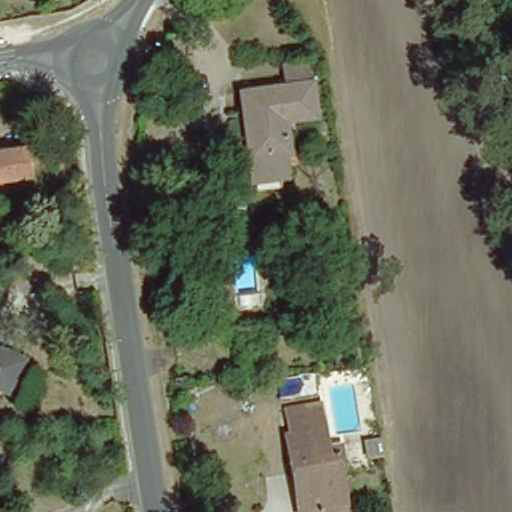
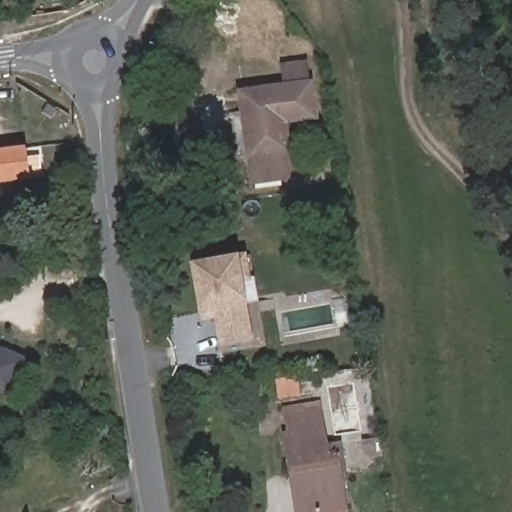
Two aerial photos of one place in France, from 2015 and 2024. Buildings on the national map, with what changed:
unchanged [(283,62),(300,60),(303,79),(309,79),(313,113),(284,117),(288,146),(248,152),(243,112),(239,89),(246,88),(286,82),(283,62)]
unchanged [(248,152),(288,146),(292,184),(252,188),(248,152)]
unchanged [(24,147),(29,178),(0,182),(0,151),(24,147)]
new [(197,311),(190,264),(241,257),(244,278),(252,277),(255,303),(240,305),(245,340),(216,343),(212,315),(198,317),(197,311)]
new [(3,348),(27,358),(7,395),(0,392),(0,348),(3,348)]
unchanged [(281,441),(286,440),(281,414),(312,408),(319,452),(335,450),(339,475),(333,476),(339,512),(293,512),(287,480),(281,441)]
unchanged [(379,445),(380,450),(380,451),(380,452),(381,455),(367,457),(364,441),(378,439),(379,445)]

